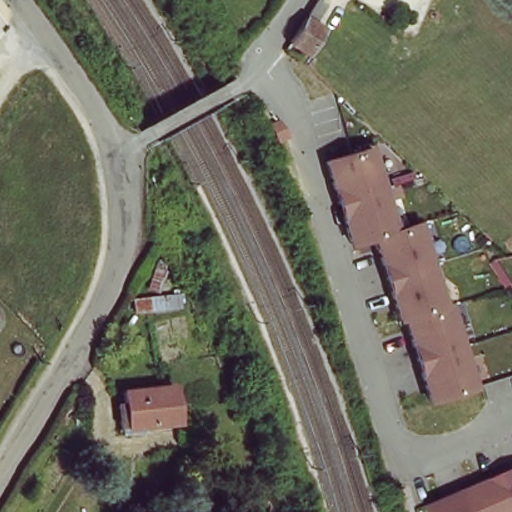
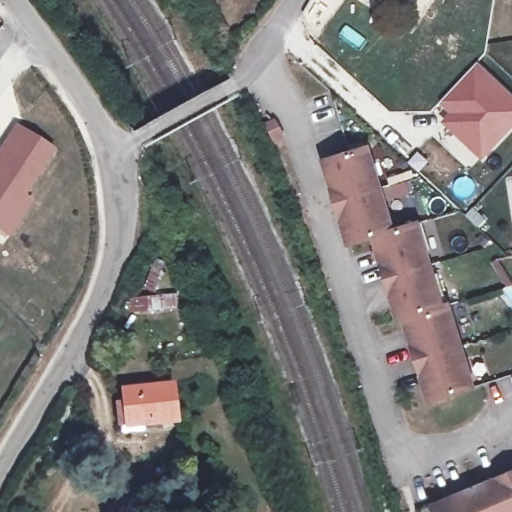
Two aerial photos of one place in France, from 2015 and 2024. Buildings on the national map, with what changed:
demolished [(320,14),(307,34),(319,41),(305,64),(283,51),(309,7),(320,14)]
new [(512,105),(512,132),(481,165),(441,129),(449,121),(438,109),(477,69),(512,105)]
new [(56,148),(28,194),(33,198),(9,237),(0,232),(0,145),(15,121),(56,148)]
unchanged [(324,157),(353,148),(365,145),(373,172),(377,186),(349,195),(334,199),(320,158),(324,157)]
unchanged [(349,195),(377,186),(390,227),(373,232),(370,233),(346,240),(334,199),(349,195)]
unchanged [(373,232),(390,227),(414,220),(426,262),(399,270),(382,275),(370,233),(373,232)]
unchanged [(399,270),(426,262),(438,303),(424,307),(400,314),(394,316),(382,275),(399,270)]
unchanged [(424,307),(438,303),(444,302),(456,343),(449,345),(412,355),(400,314),(424,307)]
unchanged [(449,345),(456,343),(461,363),(468,386),(434,395),(424,398),(412,355),(449,345)]
unchanged [(125,394),(178,388),(181,422),(129,428),(125,394)]
unchanged [(510,478),(507,472),(512,470),(512,484),(510,478)]
unchanged [(510,478),(512,484),(512,512),(478,512),(472,496),(469,489),(507,472),(510,478)]
unchanged [(469,489),(472,496),(478,512),(432,512),(430,506),(469,489)]

